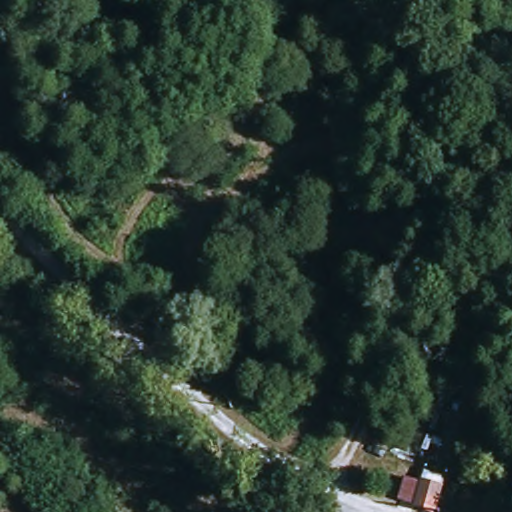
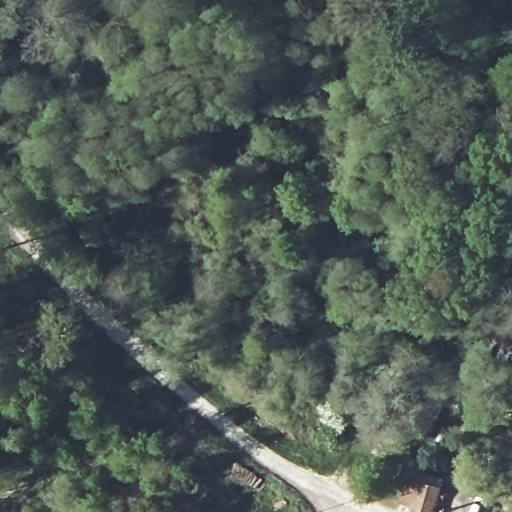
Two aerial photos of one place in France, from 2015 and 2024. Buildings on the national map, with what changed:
unchanged [(426,478),(442,484),(432,510),(416,504),(426,478)]

